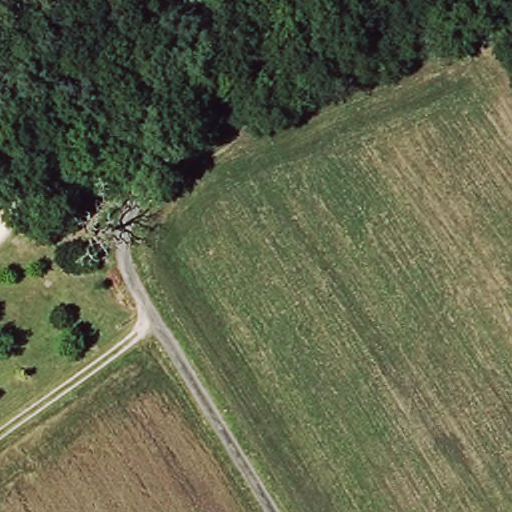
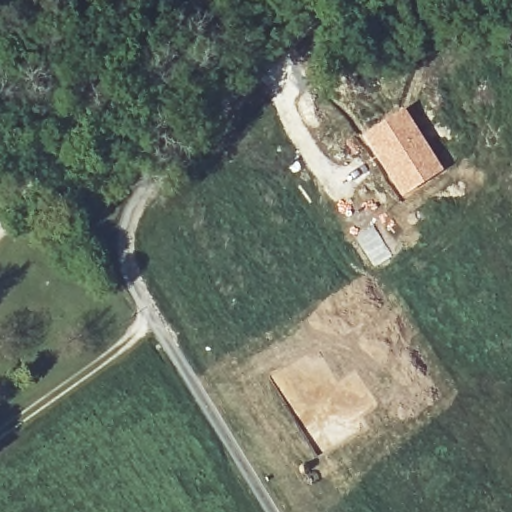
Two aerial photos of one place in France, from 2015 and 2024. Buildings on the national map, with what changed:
new [(403,107),(443,170),(402,198),(360,135),(403,107)]

